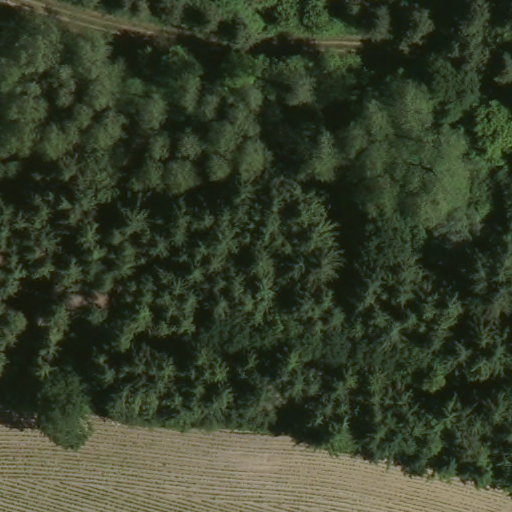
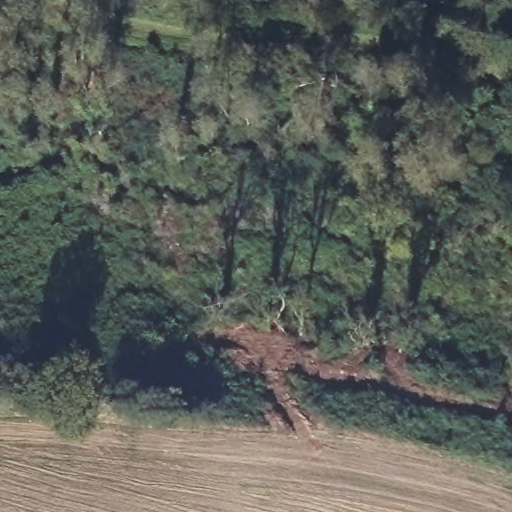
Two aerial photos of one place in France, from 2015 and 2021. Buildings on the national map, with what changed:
[]

